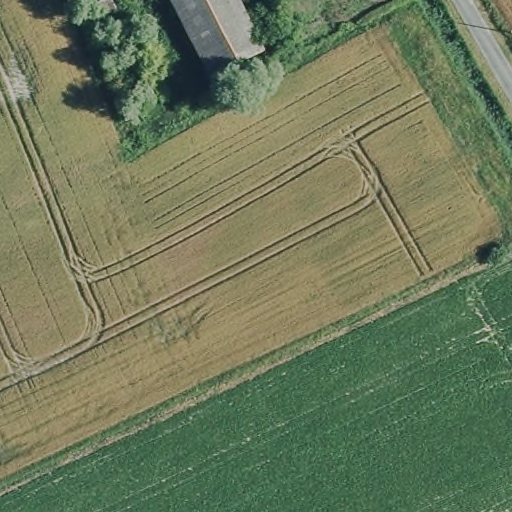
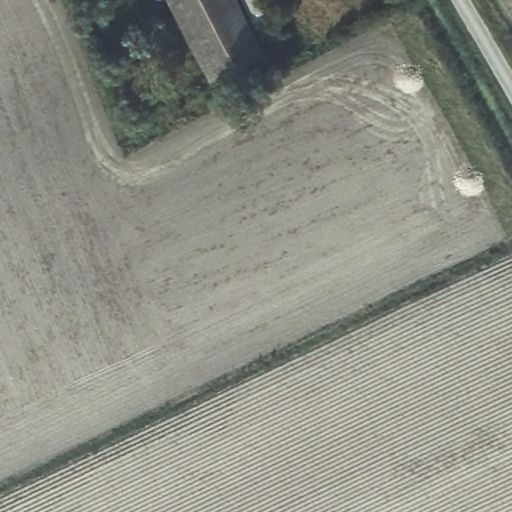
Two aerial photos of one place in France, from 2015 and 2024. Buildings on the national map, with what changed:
unchanged [(162,0),(231,0),(257,53),(204,80),(162,0)]

